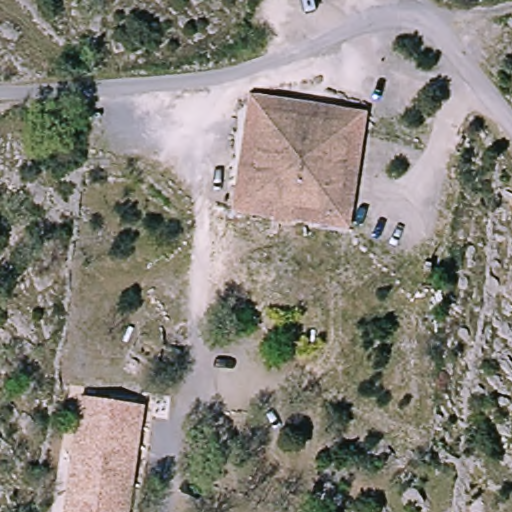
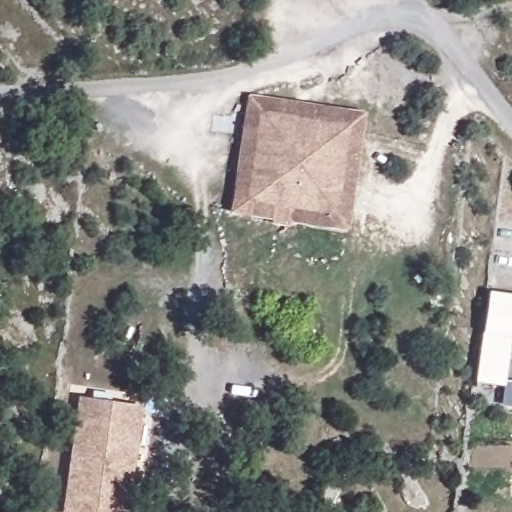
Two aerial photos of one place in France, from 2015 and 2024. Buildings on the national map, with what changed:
unchanged [(237,223),(249,107),(364,120),(351,236),(294,229),(295,216),(340,222),(349,131),(260,122),(251,212),(279,214),(277,227),(237,223)]
unchanged [(279,214),(251,212),(260,122),(349,131),(340,222),(295,216),(294,229),(293,235),(277,233),(277,227),(279,214)]
new [(504,385),(477,380),(490,291),(512,294),(512,337),(504,385)]
unchanged [(142,409),(130,512),(69,512),(82,402),(142,409)]

